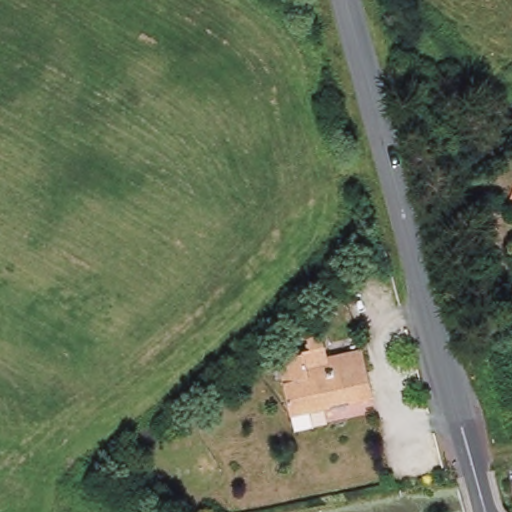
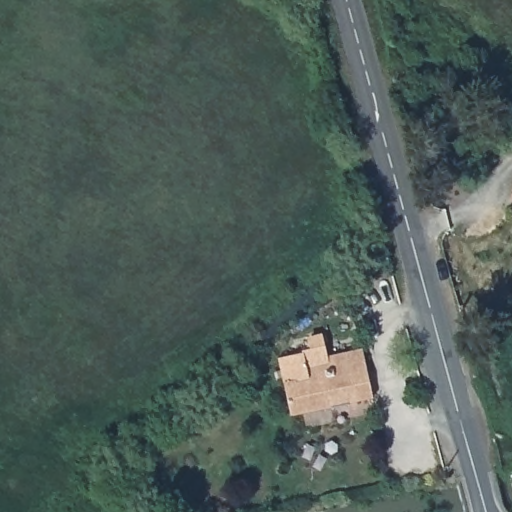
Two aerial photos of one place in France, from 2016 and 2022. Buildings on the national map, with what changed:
unchanged [(377,396),(296,415),(281,359),(328,346),(332,355),(366,345),(377,396)]

